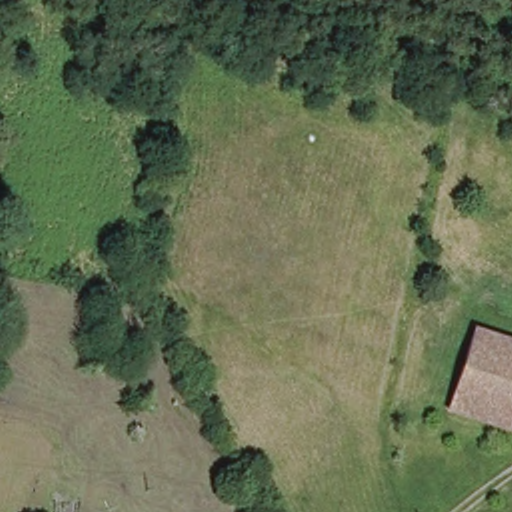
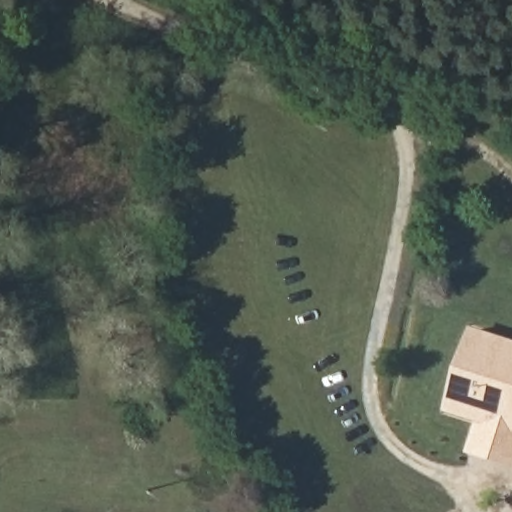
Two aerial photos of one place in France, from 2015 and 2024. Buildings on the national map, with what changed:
unchanged [(471,336),(506,346),(512,348),(512,428),(451,411),(471,336)]
new [(477,418),(512,428),(512,467),(467,453),(477,418)]

